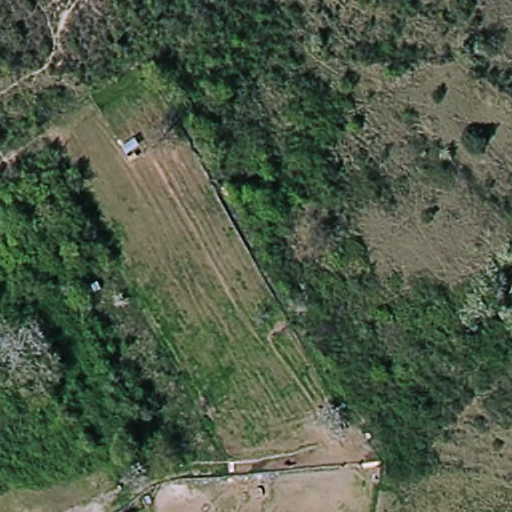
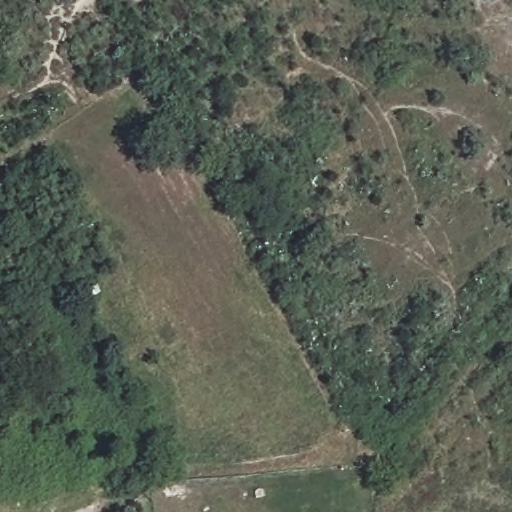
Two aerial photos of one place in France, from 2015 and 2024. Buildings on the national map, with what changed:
[]

